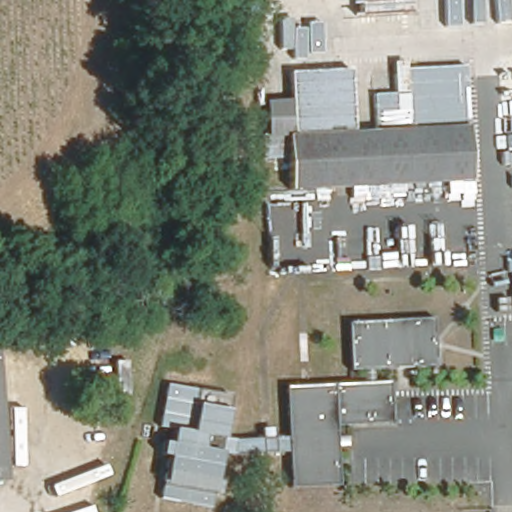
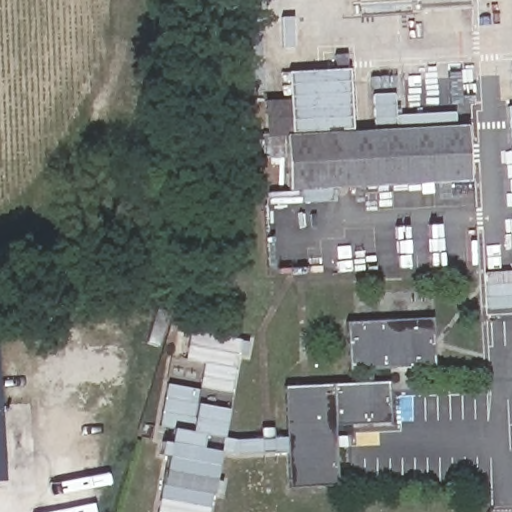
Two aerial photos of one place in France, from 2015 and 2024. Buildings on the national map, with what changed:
unchanged [(376,94),(396,93),(395,61),(405,60),(407,69),(462,68),(465,127),(379,135),(376,94)]
unchanged [(281,144),(282,155),(264,159),(266,100),(290,98),(288,71),(349,67),(357,137),(281,144)]
unchanged [(357,137),(379,135),(465,127),(471,182),(287,200),(282,155),(281,144),(357,137)]
new [(512,215),(512,224),(511,215),(512,215)]
new [(485,273),(512,271),(512,308),(487,309),(485,273)]
unchanged [(269,431),(270,440),(285,438),(279,387),(358,379),(356,361),(345,362),(340,315),(425,306),(430,353),(367,360),(369,377),(385,376),(389,417),(331,425),(337,484),(290,489),(286,453),(227,460),(217,458),(213,486),(222,487),(220,500),(211,499),(210,512),(195,512),(159,507),(165,463),(157,462),(159,449),(167,450),(169,436),(156,434),(162,391),(226,400),(220,442),(234,443),(257,441),(256,433),(269,431)]
unchanged [(3,470),(0,470),(0,434),(3,470)]

